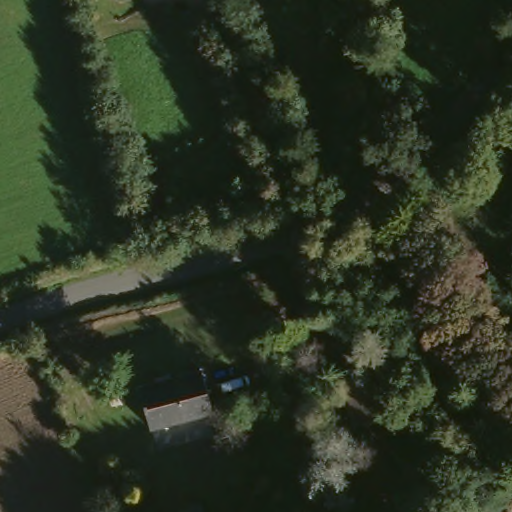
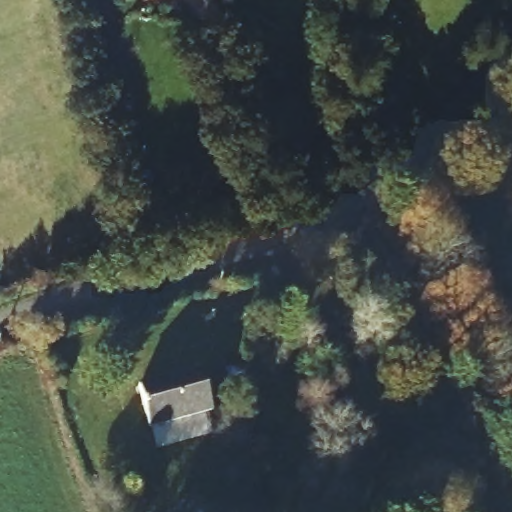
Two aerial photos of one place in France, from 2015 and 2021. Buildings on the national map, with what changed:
unchanged [(347,375),(383,361),(401,406),(365,419),(347,375)]
unchanged [(151,431),(143,388),(202,372),(211,416),(151,431)]

